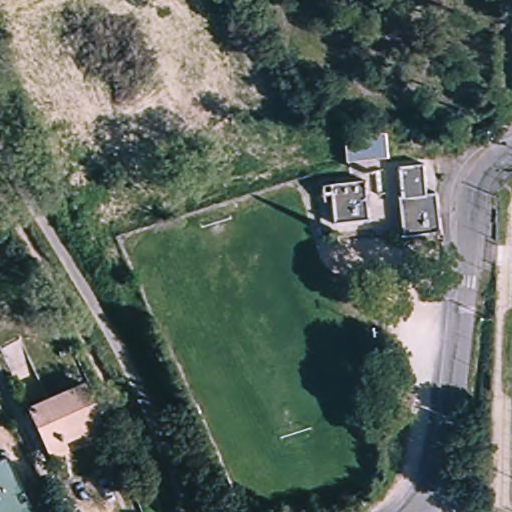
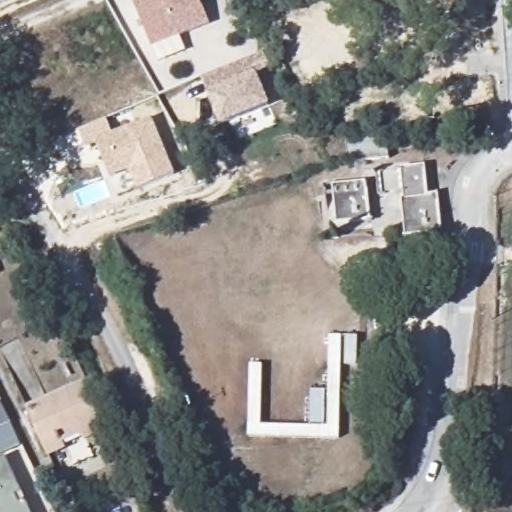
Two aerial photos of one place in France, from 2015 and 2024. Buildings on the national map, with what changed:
new [(164,0),(200,0),(211,29),(152,51),(145,30),(142,24),(137,10),(164,0)]
new [(265,57),(275,76),(260,83),(273,112),(224,135),(202,86),(265,57)]
new [(175,173),(137,189),(129,170),(111,178),(97,145),(86,147),(79,128),(107,118),(114,132),(151,117),(175,173)]
unchanged [(391,130),(393,152),(352,154),(351,139),(391,130)]
unchanged [(432,184),(438,184),(443,227),(400,232),(396,190),(406,186),(403,159),(427,157),(432,184)]
unchanged [(372,221),(332,225),(328,178),(368,177),(372,221)]
unchanged [(47,441),(30,407),(51,398),(80,385),(88,381),(107,426),(103,428),(82,438),(53,453),(47,441)]
new [(10,422),(0,427),(0,402),(1,401),(10,422)]
unchanged [(33,512),(0,512),(0,460),(6,457),(33,512)]

